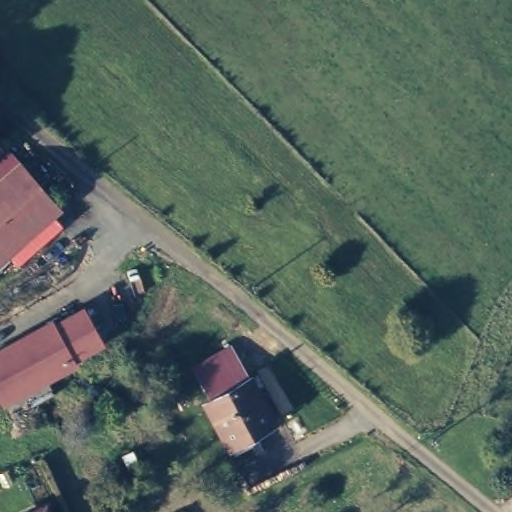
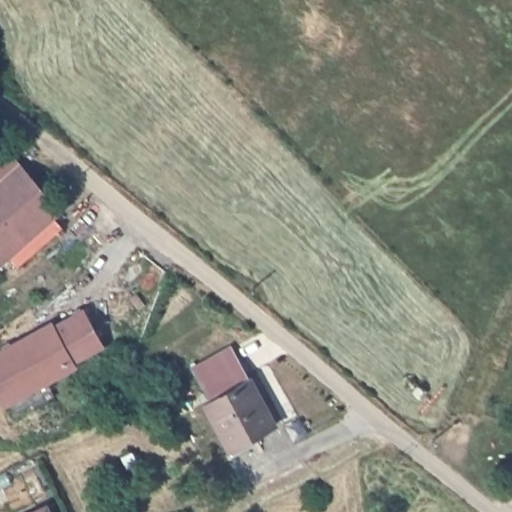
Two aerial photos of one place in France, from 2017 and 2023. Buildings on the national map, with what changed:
unchanged [(45,188),(45,201),(0,242),(0,164),(13,152),(45,188)]
unchanged [(53,317),(56,322),(82,307),(103,346),(76,360),(81,368),(3,408),(0,402),(0,347),(53,317)]
unchanged [(275,425),(232,453),(205,411),(215,405),(197,374),(227,354),(275,425)]
unchanged [(47,512),(39,512),(45,509),(47,512)]

